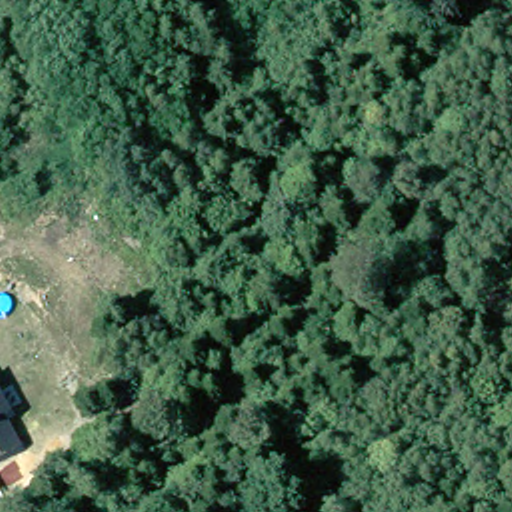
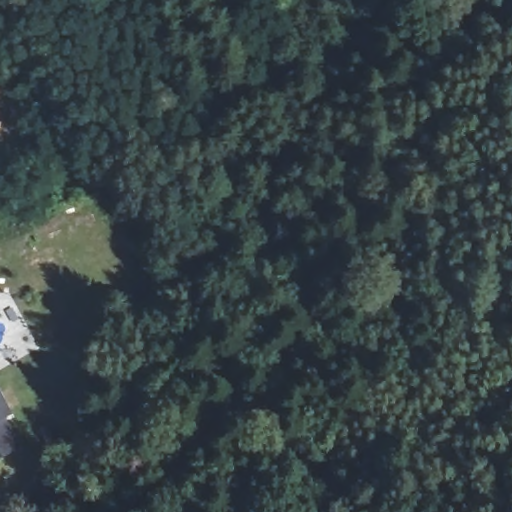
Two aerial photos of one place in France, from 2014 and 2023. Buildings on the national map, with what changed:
unchanged [(4,418),(20,447),(0,457),(0,390),(12,413),(4,418)]

